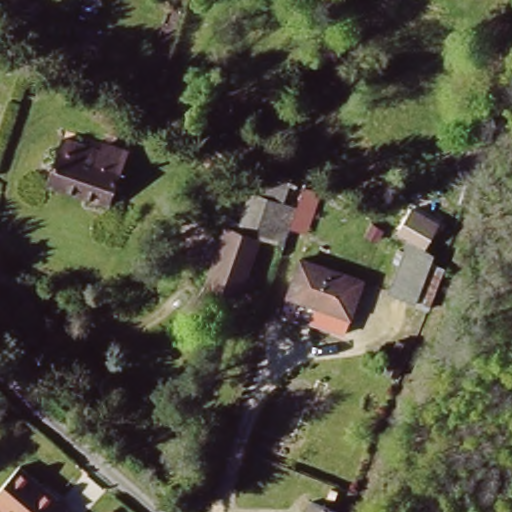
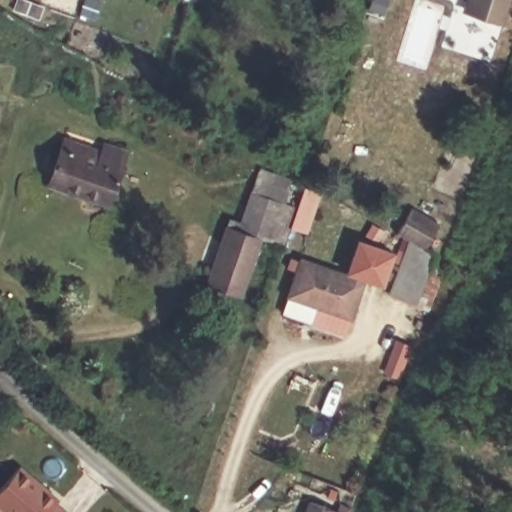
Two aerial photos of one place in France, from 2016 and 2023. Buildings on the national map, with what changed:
new [(465,0),(512,0),(512,1),(505,25),(462,12),(465,0)]
unchanged [(124,156),(107,211),(85,204),(87,200),(48,186),(57,155),(60,145),(100,157),(102,149),(124,156)]
unchanged [(256,298),(222,287),(244,220),(249,221),(262,180),(291,190),(256,298)]
unchanged [(415,299),(389,290),(407,235),(432,249),(429,260),(435,262),(422,301),(415,299)]
unchanged [(365,278),(352,317),(289,297),(302,256),(365,278)]
unchanged [(400,345),(393,364),(380,360),(388,340),(392,328),(405,332),(400,345)]
unchanged [(61,495),(56,501),(68,512),(7,512),(0,506),(0,486),(20,462),(61,495)]
unchanged [(311,512),(317,499),(347,511),(346,512),(311,512)]

